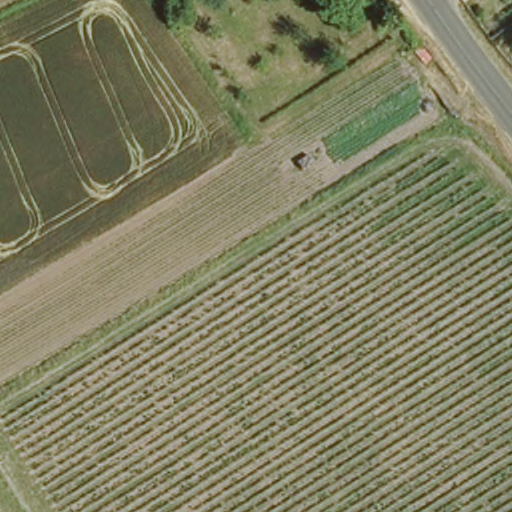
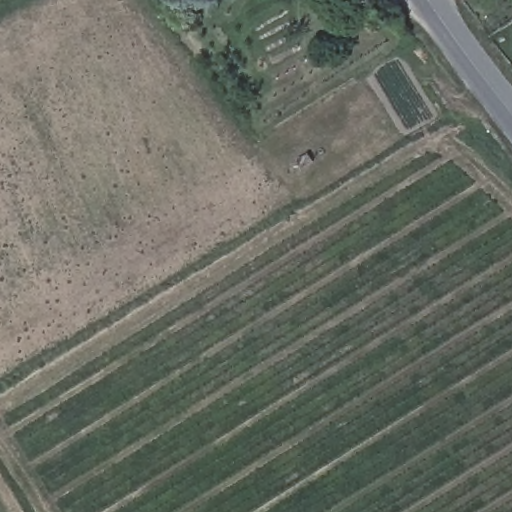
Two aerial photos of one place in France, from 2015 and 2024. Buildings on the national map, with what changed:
[]

